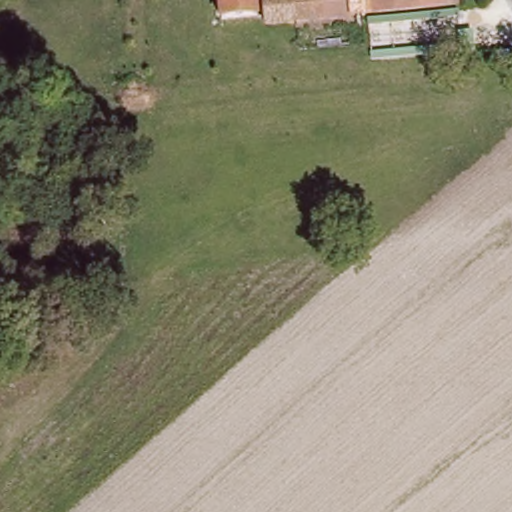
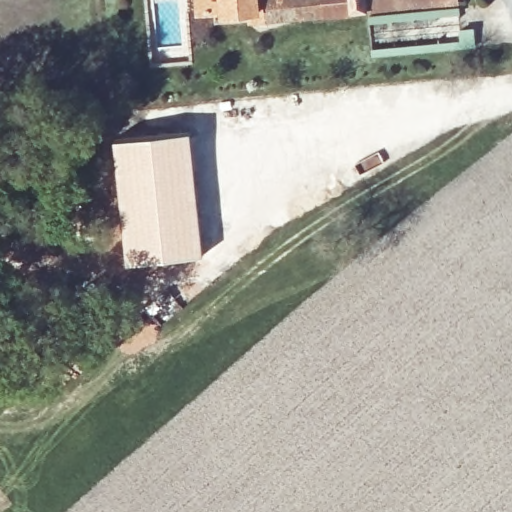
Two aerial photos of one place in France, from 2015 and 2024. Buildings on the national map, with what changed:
unchanged [(258,12),(225,14),(224,0),(257,0),(258,12)]
unchanged [(267,21),(267,12),(266,0),(365,0),(367,11),(267,21)]
unchanged [(367,12),(367,11),(365,0),(456,0),(456,2),(367,12)]
new [(189,133),(201,256),(126,265),(114,140),(189,133)]

